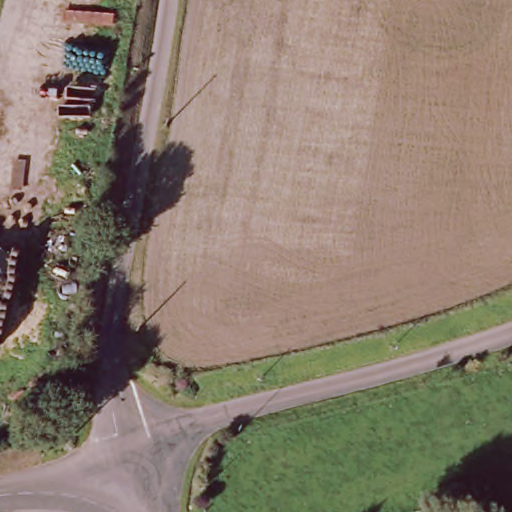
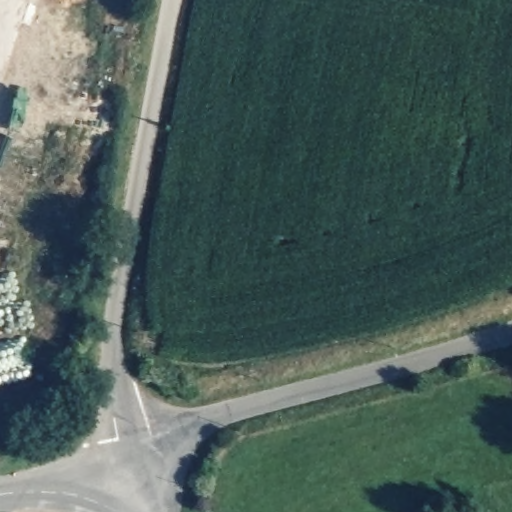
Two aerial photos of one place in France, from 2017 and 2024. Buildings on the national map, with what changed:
[]

